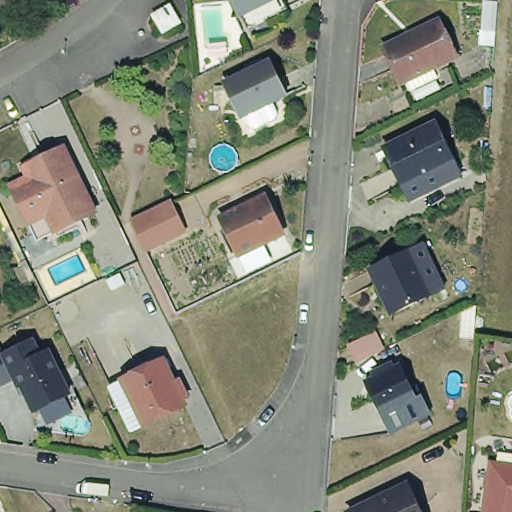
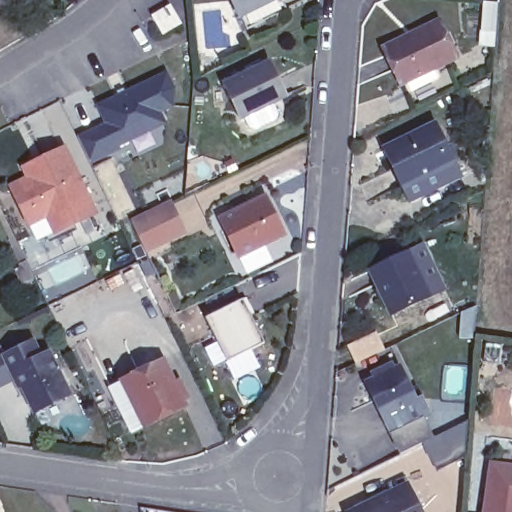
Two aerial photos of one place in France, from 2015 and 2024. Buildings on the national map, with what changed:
unchanged [(0,7),(0,0),(13,0),(14,0),(0,7)]
unchanged [(236,21),(225,0),(276,0),(277,1),(236,21)]
unchanged [(496,36),(482,35),(484,4),(499,5),(496,36)]
unchanged [(180,27),(164,36),(155,19),(172,10),(180,27)]
unchanged [(453,59),(397,86),(379,50),(435,23),(453,59)]
unchanged [(282,98),(235,120),(219,85),(265,63),(282,98)]
new [(179,102),(159,113),(164,124),(90,163),(77,136),(105,124),(97,108),(165,74),(179,102)]
unchanged [(449,159),(397,184),(380,145),(431,120),(449,159)]
unchanged [(27,227),(9,190),(29,182),(23,169),(40,161),(64,149),(94,217),(54,235),(35,244),(27,227)]
unchanged [(279,237),(234,259),(216,222),(261,199),(279,237)]
unchanged [(171,204),(182,227),(185,234),(182,235),(145,252),(130,222),(171,204)]
unchanged [(365,272),(405,252),(418,244),(435,278),(429,280),(435,293),(426,297),(387,317),(365,272)]
new [(242,302),(264,345),(227,363),(206,320),(242,302)]
new [(385,352),(355,365),(347,346),(375,333),(385,352)]
unchanged [(44,355),(65,398),(30,415),(14,382),(10,374),(7,375),(0,359),(0,358),(29,344),(36,359),(44,355)]
new [(10,374),(14,382),(0,389),(0,359),(7,375),(10,374)]
unchanged [(185,408),(145,427),(124,383),(163,363),(185,408)]
unchanged [(415,407),(381,424),(362,386),(397,369),(415,407)]
unchanged [(487,462),(512,466),(512,512),(480,512),(487,462)]
unchanged [(407,488),(419,512),(356,512),(407,488)]

